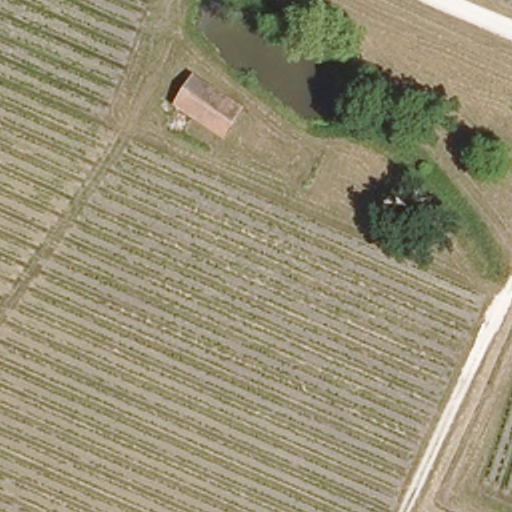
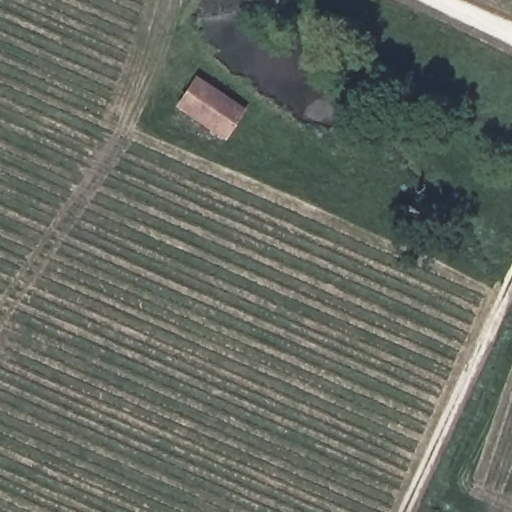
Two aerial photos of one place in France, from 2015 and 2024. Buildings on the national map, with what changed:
unchanged [(197,126),(175,112),(199,73),(242,100),(231,119),(217,140),(197,126)]

